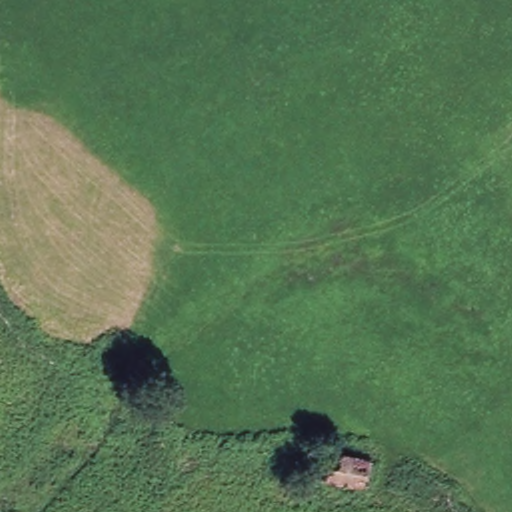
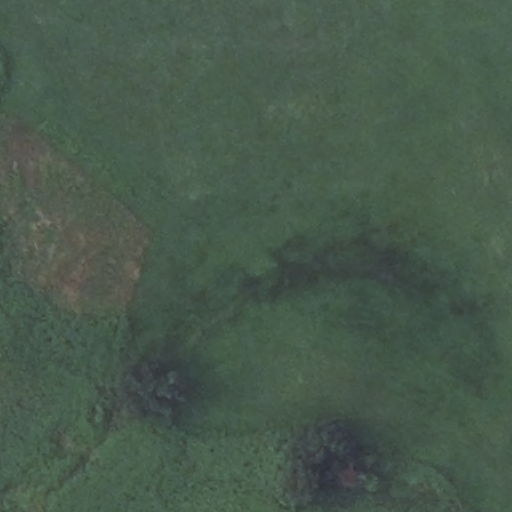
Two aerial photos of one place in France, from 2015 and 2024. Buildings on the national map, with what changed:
unchanged [(367,484),(302,475),(305,449),(371,460),(367,484)]

